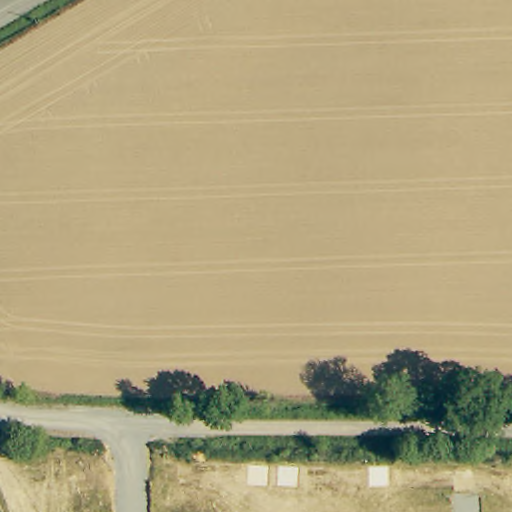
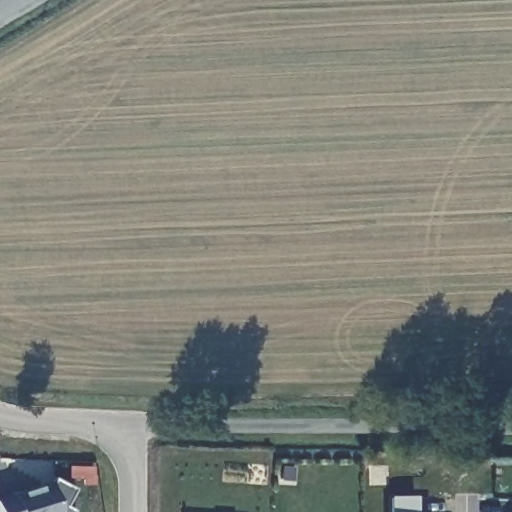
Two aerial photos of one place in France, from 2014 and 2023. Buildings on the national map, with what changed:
new [(75,490),(66,507),(74,512),(0,512),(0,498),(51,484),(56,479),(75,490)]

